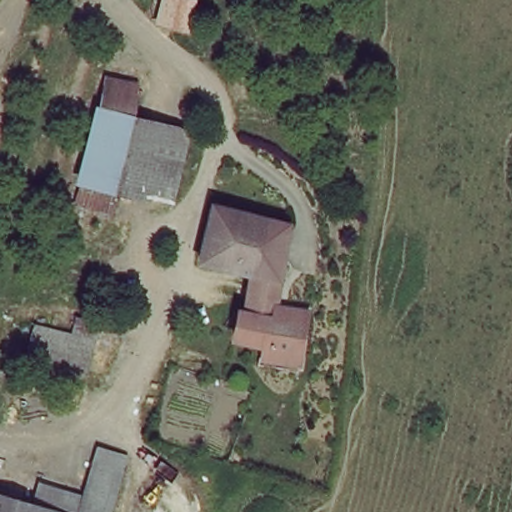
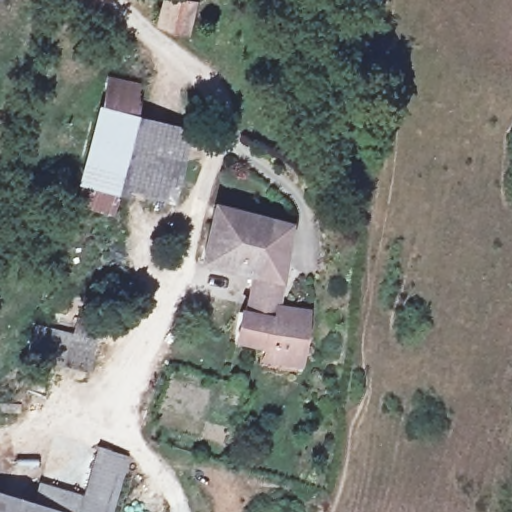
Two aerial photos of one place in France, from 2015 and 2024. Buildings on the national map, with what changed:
unchanged [(158,23),(162,0),(196,0),(191,28),(158,23)]
unchanged [(82,164),(95,88),(127,94),(124,116),(114,170),(82,164)]
unchanged [(183,126),(173,180),(124,172),(114,170),(124,116),(183,126)]
unchanged [(114,170),(124,172),(121,194),(78,187),(82,164),(114,170)]
unchanged [(250,356),(252,334),(238,333),(245,270),(199,263),(206,209),(287,219),(278,293),(310,296),(305,352),(279,349),(279,357),(250,356)]
unchanged [(85,371),(23,357),(30,331),(61,337),(68,339),(70,329),(73,315),(96,321),(92,335),(88,355),(85,371)]
unchanged [(111,512),(0,512),(0,491),(31,499),(38,479),(77,491),(93,446),(125,451),(111,512)]

